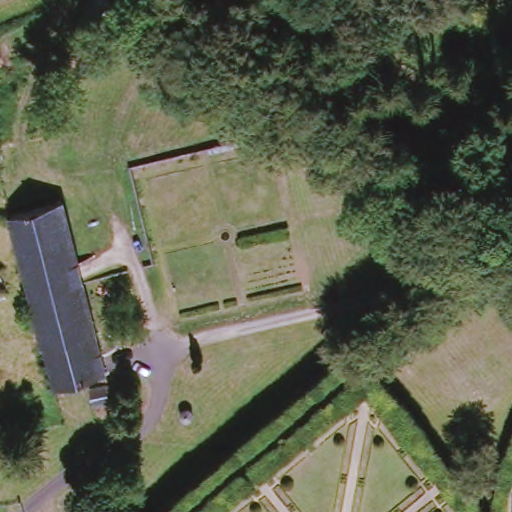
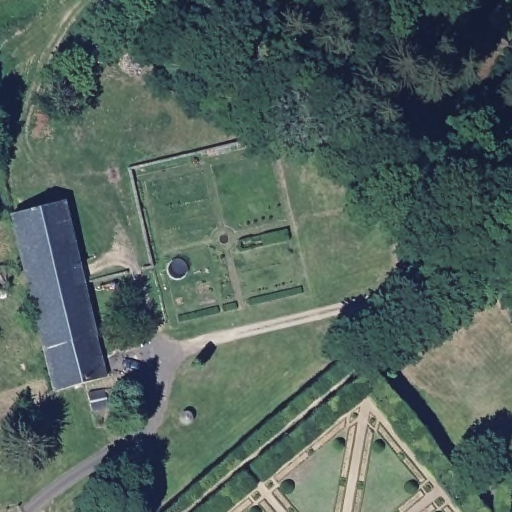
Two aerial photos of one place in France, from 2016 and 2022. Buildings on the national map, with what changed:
unchanged [(77,283),(89,334),(39,348),(7,214),(57,202),(77,283)]
unchanged [(49,391),(39,348),(89,334),(99,376),(49,391)]
unchanged [(183,423),(182,416),(187,415),(189,422),(183,423)]

